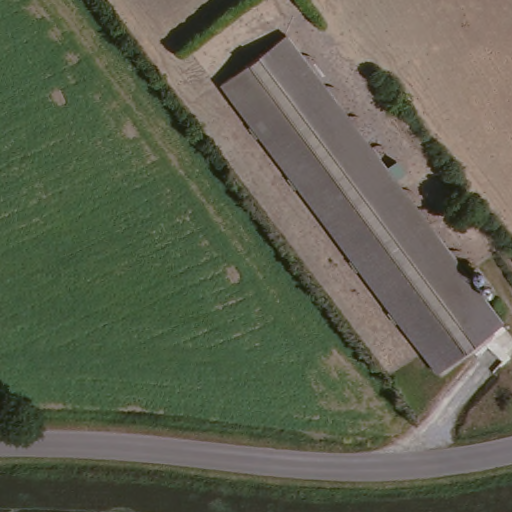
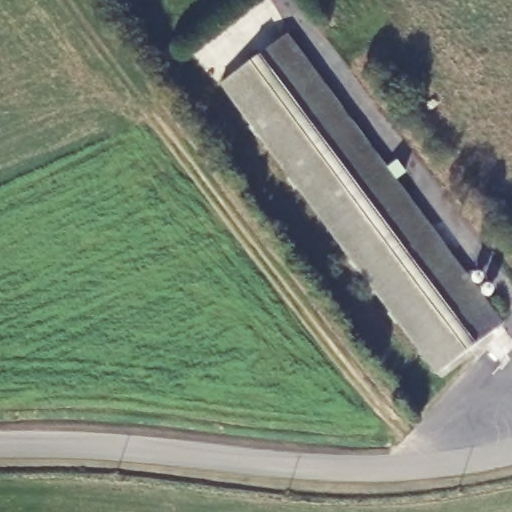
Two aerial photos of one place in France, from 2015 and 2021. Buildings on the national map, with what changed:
unchanged [(292,33),(509,321),(442,371),(225,82),(292,33)]

